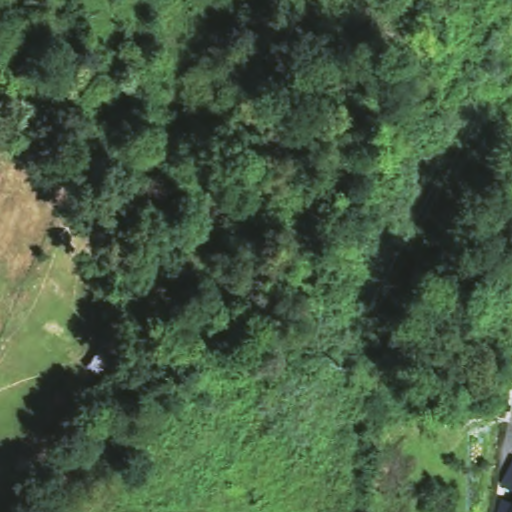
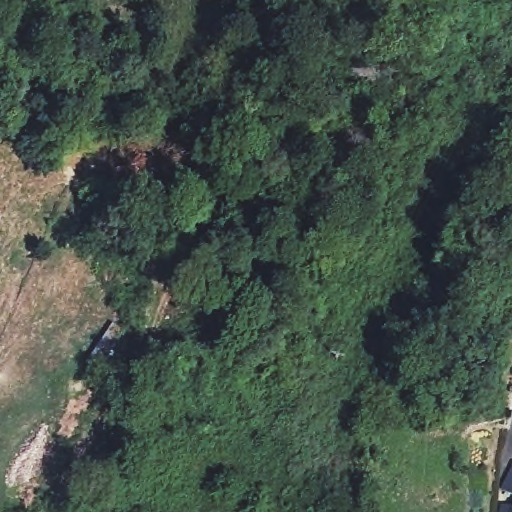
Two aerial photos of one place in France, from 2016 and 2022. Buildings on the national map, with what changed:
unchanged [(508,462),(512,464),(512,487),(500,482),(508,462)]
unchanged [(510,507),(512,503),(512,512),(494,512),(498,502),(510,507)]

